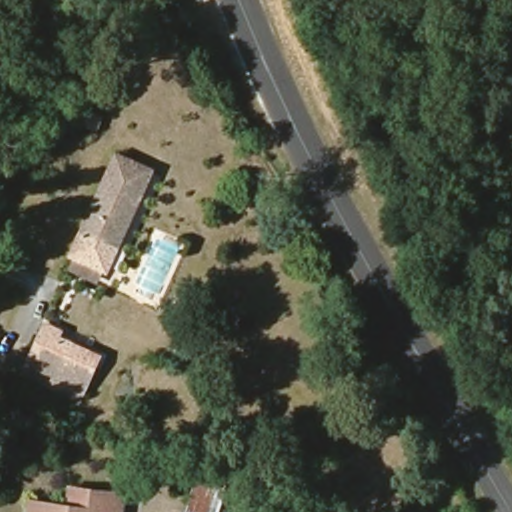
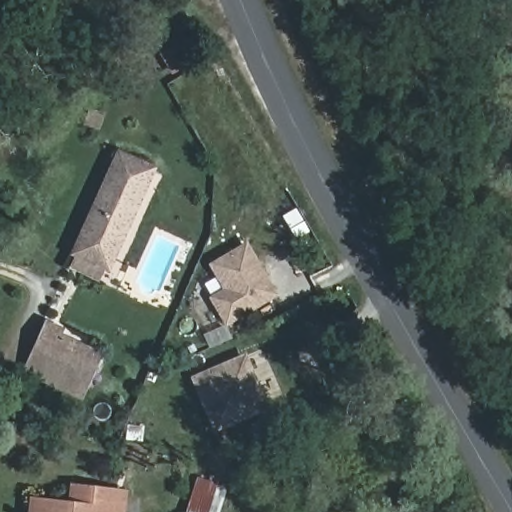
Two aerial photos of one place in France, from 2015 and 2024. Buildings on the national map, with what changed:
unchanged [(72,259),(77,247),(76,246),(119,152),(151,167),(108,261),(107,260),(101,272),(72,259)]
new [(225,322),(213,299),(228,290),(214,265),(246,246),(273,294),(225,322)]
unchanged [(96,356),(76,402),(21,377),(42,331),(96,356)]
new [(269,410),(214,433),(190,376),(246,352),(269,410)]
unchanged [(63,508),(66,487),(94,490),(119,493),(119,512),(30,512),(31,505),(63,508)]
unchanged [(215,512),(184,512),(193,489),(220,500),(215,512)]

